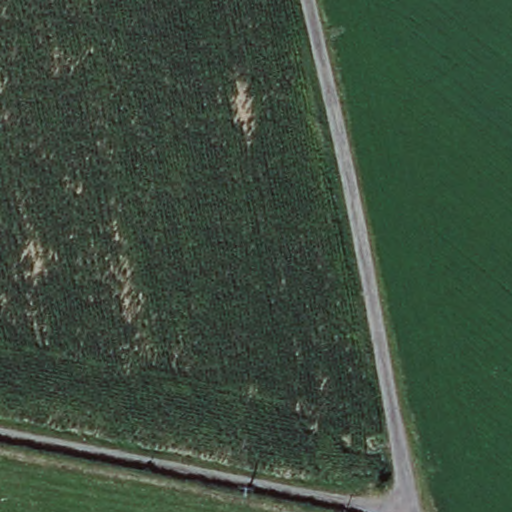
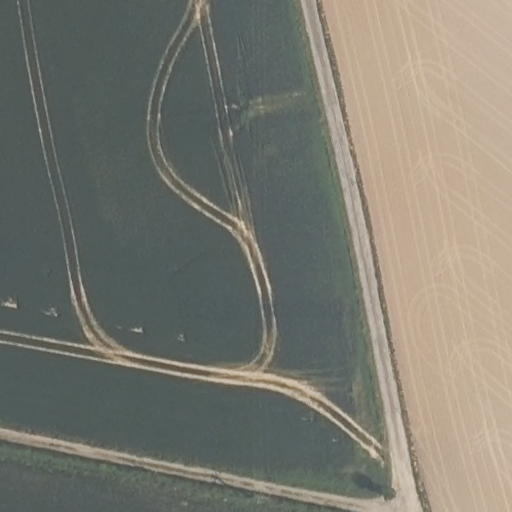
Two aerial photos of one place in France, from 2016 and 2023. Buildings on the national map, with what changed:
[]

